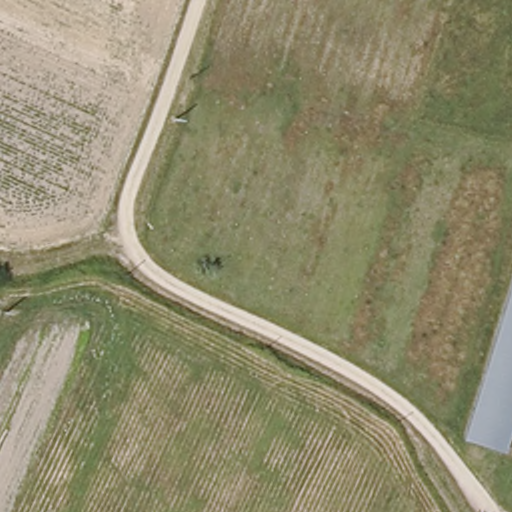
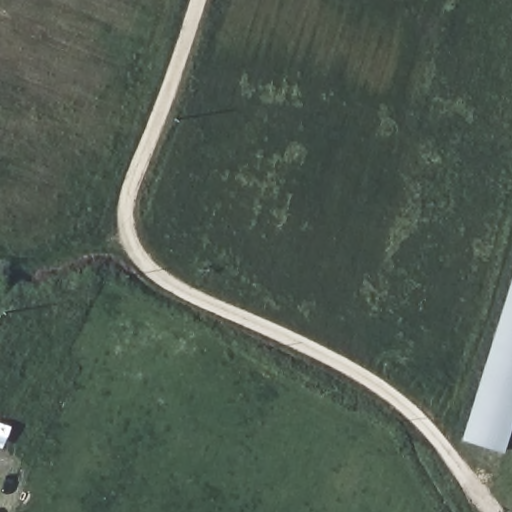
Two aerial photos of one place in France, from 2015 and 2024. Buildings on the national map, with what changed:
unchanged [(512,458),(475,451),(512,299),(512,458)]

